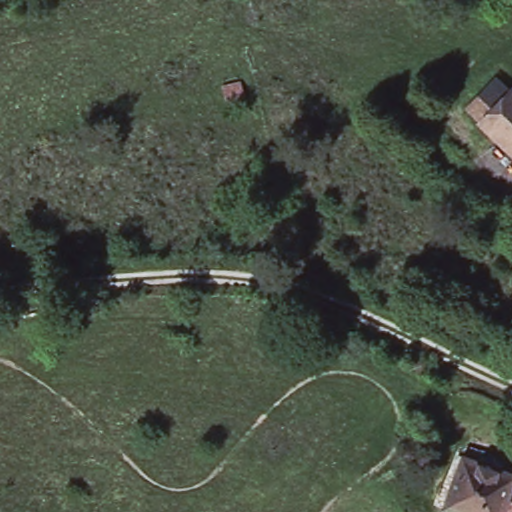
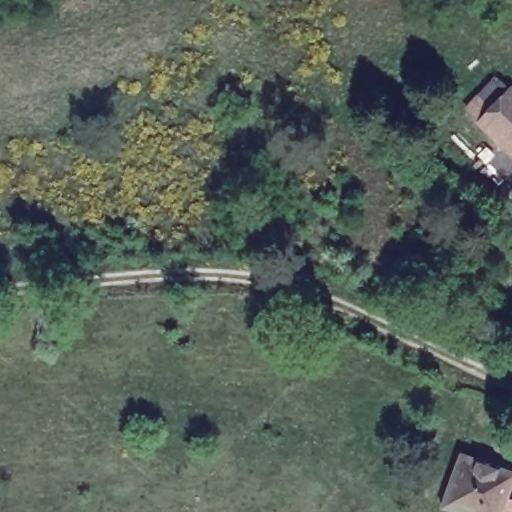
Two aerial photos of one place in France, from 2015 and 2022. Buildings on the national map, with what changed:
unchanged [(239,82),(246,105),(228,109),(222,86),(239,82)]
unchanged [(481,127),(468,115),(479,102),(493,116),(512,96),(512,158),(481,127)]
unchanged [(461,455),(512,472),(512,483),(502,512),(453,512),(442,508),(461,455)]

